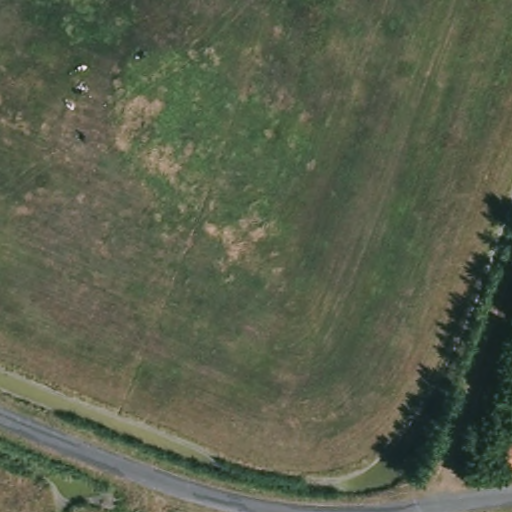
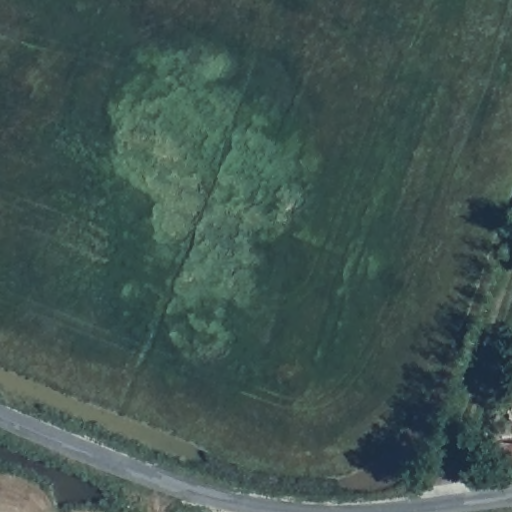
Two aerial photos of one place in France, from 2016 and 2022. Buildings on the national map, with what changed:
unchanged [(506,452),(512,452),(512,475),(505,475),(506,452)]

